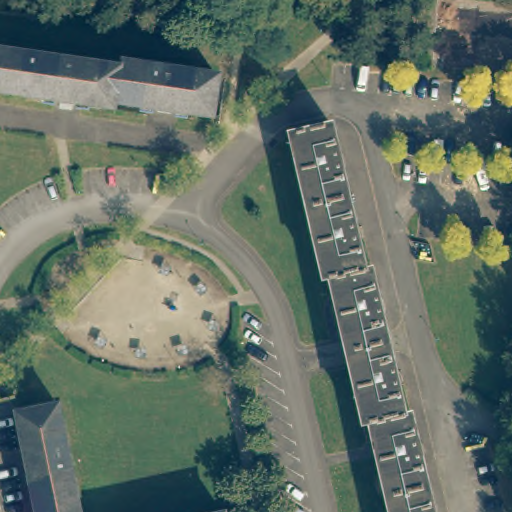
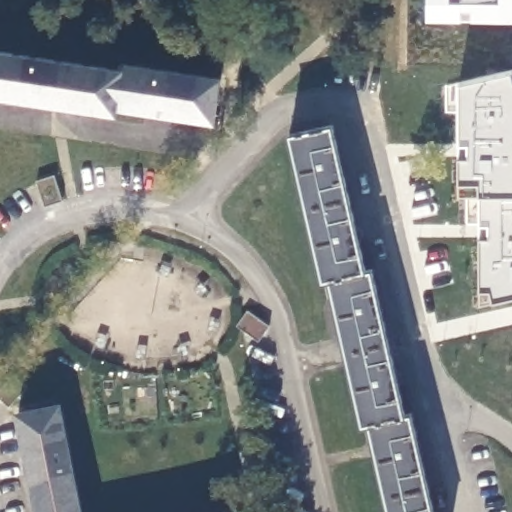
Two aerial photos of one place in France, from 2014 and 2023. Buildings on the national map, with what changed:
unchanged [(0,88),(0,48),(11,49),(24,51),(18,91),(0,88)]
unchanged [(116,99),(115,105),(79,100),(55,96),(18,91),(24,51),(121,65),(116,99)]
unchanged [(122,59),(123,59),(219,74),(216,94),(213,114),(176,108),(147,103),(116,99),(121,65),(122,59)]
new [(460,184),(460,155),(460,142),(460,81),(512,70),(512,194),(480,194),(460,193),(460,184)]
unchanged [(289,130),(332,120),(339,151),(342,150),(345,163),(342,164),(349,194),(306,203),(289,130)]
unchanged [(322,276),(306,203),(349,194),(356,223),(358,222),(361,236),(359,236),(366,266),(329,274),(322,276)]
new [(512,297),(495,300),(480,304),(480,289),(480,236),(480,224),(480,194),(512,194),(512,297)]
unchanged [(371,265),(378,294),(381,293),(384,308),(381,309),(388,338),(345,347),(329,274),(366,266),(371,265)]
unchanged [(394,367),(397,366),(400,379),(397,380),(404,411),(368,419),(362,420),(345,347),(388,338),(394,367)]
unchanged [(14,404),(53,396),(73,492),(33,499),(14,404)]
unchanged [(404,411),(411,409),(418,439),(421,438),(424,451),(421,452),(428,482),(385,492),(368,419),(404,411)]
unchanged [(385,492),(428,482),(435,511),(437,511),(438,512),(390,512),(385,492)]
unchanged [(73,492),(77,512),(36,512),(33,499),(73,492)]
unchanged [(219,505),(220,512),(183,512),(219,505)]

